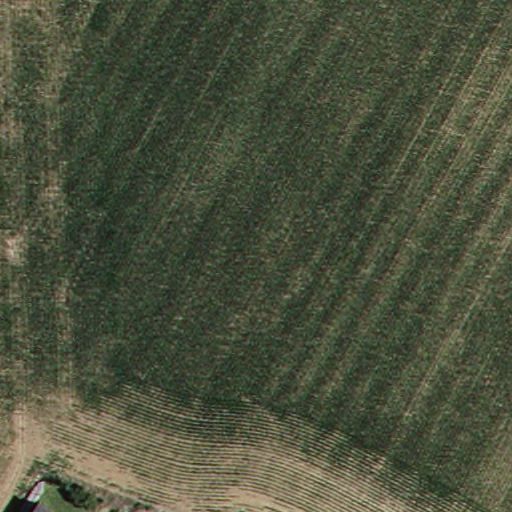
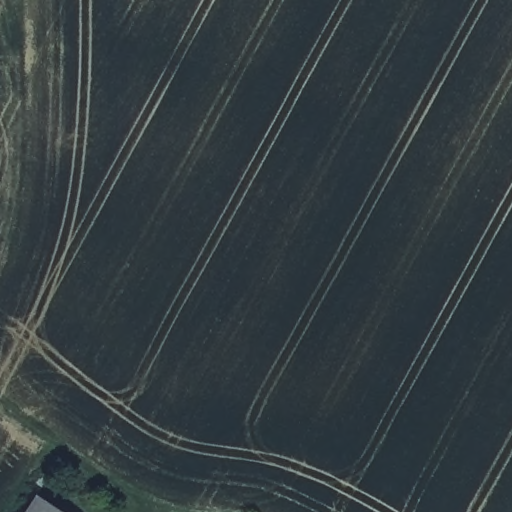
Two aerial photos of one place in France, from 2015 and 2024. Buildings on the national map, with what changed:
unchanged [(30,500),(50,512),(24,512),(30,500)]

